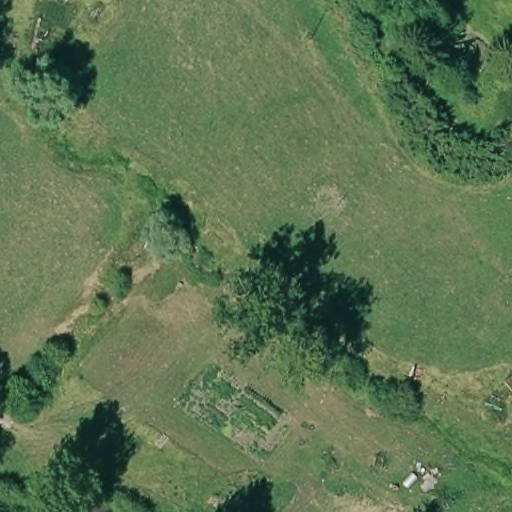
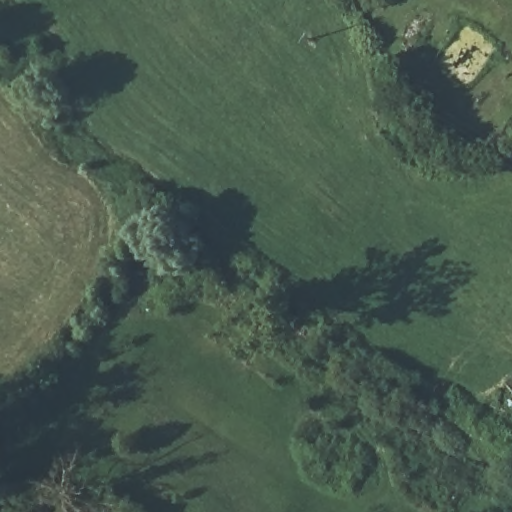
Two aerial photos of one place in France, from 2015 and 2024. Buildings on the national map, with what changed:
[]

